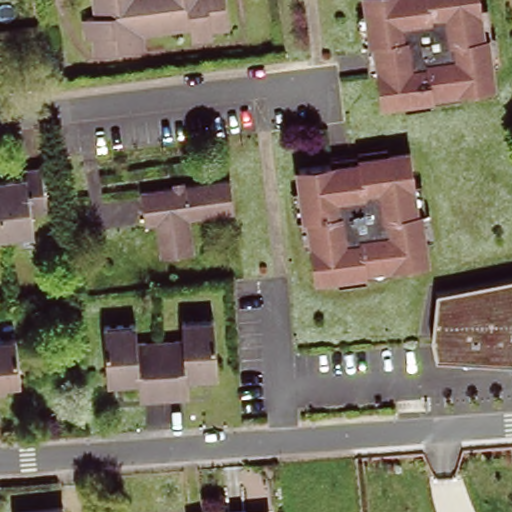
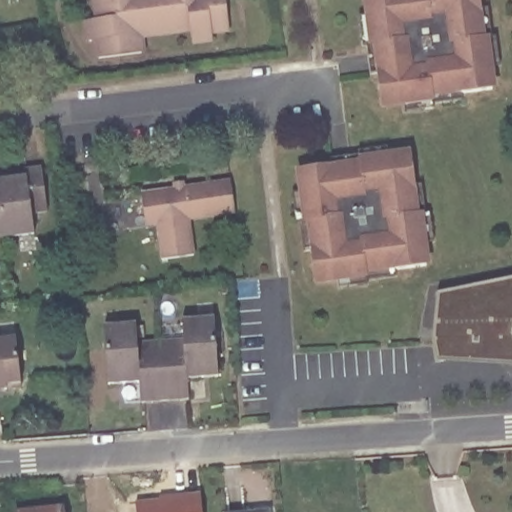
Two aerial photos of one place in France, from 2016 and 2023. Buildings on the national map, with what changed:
unchanged [(215,31),(216,39),(196,41),(194,29),(143,36),(146,54),(103,60),(100,44),(93,45),(90,24),(103,23),(99,0),(228,0),(232,29),(215,31)]
unchanged [(431,101),(401,106),(400,95),(378,98),(373,66),(367,68),(363,40),(359,40),(355,11),(366,9),(364,0),(477,0),(477,1),(483,0),(488,29),(492,29),(496,59),(486,60),(490,82),(458,86),(459,94),(431,98),(431,101)]
unchanged [(508,0),(512,0),(512,19),(508,0)]
unchanged [(365,270),(366,274),(336,279),(335,269),(311,272),(311,268),(307,241),(302,242),(298,213),(294,214),(290,184),(300,183),(297,160),(330,155),(328,149),(356,145),(356,141),(385,138),(386,148),(408,145),(412,175),(418,174),(422,203),(427,202),(431,232),(420,233),(423,257),(408,259),(401,259),(393,260),(394,267),(365,270)]
unchanged [(12,177),(25,174),(24,166),(42,164),(42,169),(47,209),(31,211),(33,232),(20,233),(12,177)]
unchanged [(12,177),(20,233),(2,235),(0,236),(0,178),(8,177),(12,177)]
unchanged [(163,254),(160,230),(159,221),(148,223),(144,189),(177,184),(176,179),(184,178),(185,184),(231,177),(236,210),(192,217),(193,227),(196,250),(163,254)]
unchanged [(432,340),(436,294),(512,279),(512,367),(436,362),(432,340)]
unchanged [(107,376),(107,374),(103,323),(135,320),(137,339),(160,338),(183,336),(182,317),(214,314),(216,362),(217,368),(217,373),(202,374),(187,376),(189,396),(164,398),(140,399),(139,379),(122,381),(108,382),(107,376)]
unchanged [(0,383),(0,333),(15,331),(20,369),(20,374),(21,380),(5,383),(0,383)]
new [(135,504),(158,502),(158,499),(200,496),(201,512),(135,512),(135,504)]
unchanged [(63,509),(64,512),(22,512),(63,509)]
unchanged [(266,509),(267,512),(234,512),(266,509)]

